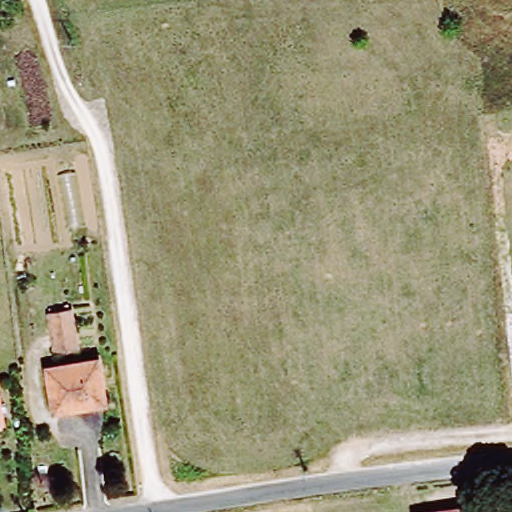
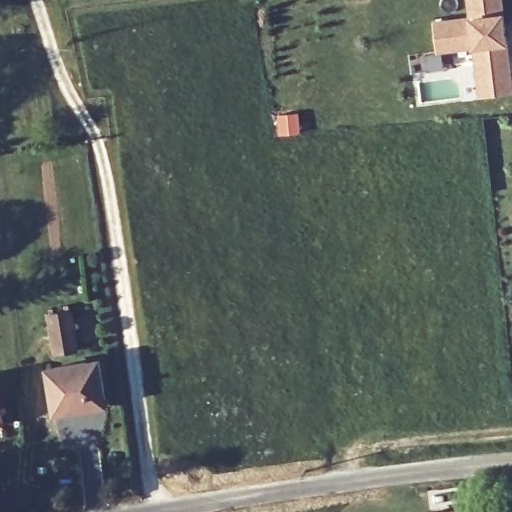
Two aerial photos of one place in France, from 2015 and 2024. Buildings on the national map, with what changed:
new [(478,81),(475,46),(438,50),(435,21),(473,18),(471,0),(503,0),(511,78),(512,88),(512,93),(480,96),(478,81)]
unchanged [(56,356),(50,320),(71,316),(79,352),(56,356)]
unchanged [(101,362),(109,405),(55,414),(47,371),(101,362)]
unchanged [(0,425),(0,404),(4,424),(0,425)]
unchanged [(468,511),(469,512),(458,512),(468,511)]

